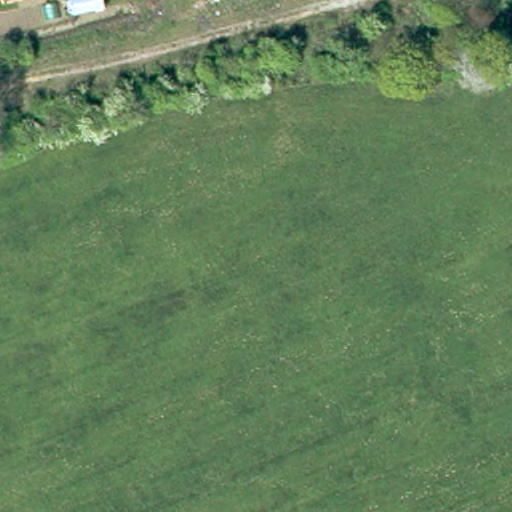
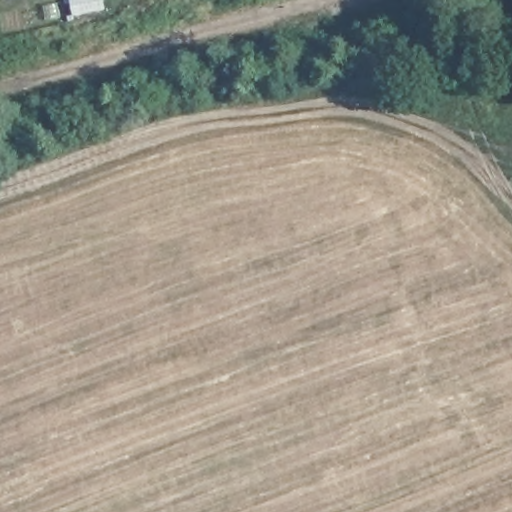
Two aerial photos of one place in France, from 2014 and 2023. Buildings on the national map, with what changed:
unchanged [(103,0),(103,1),(105,9),(73,15),(69,0),(103,0)]

